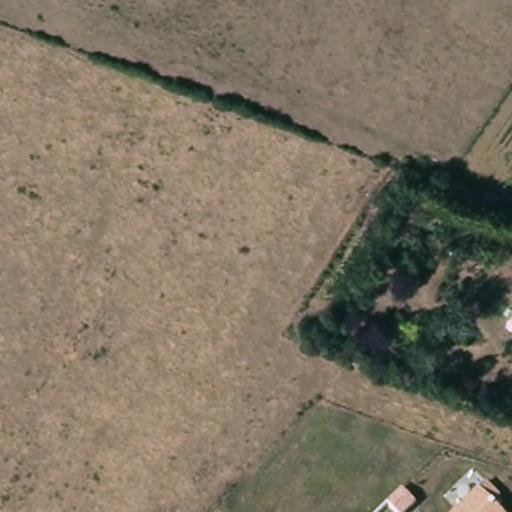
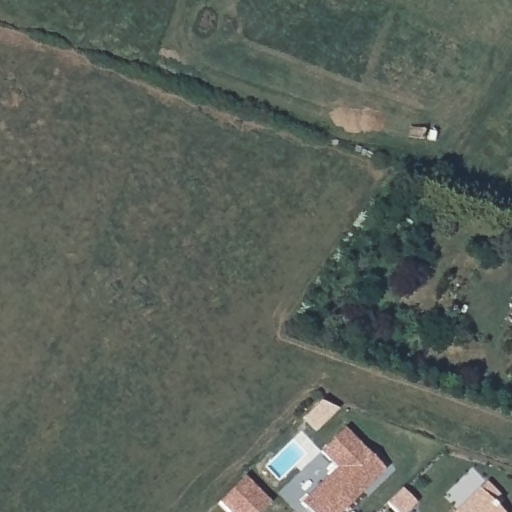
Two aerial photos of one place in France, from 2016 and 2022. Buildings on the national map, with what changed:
new [(335,468),(320,453),(345,427),(385,469),(342,512),(311,512),(301,501),(335,468)]
new [(261,512),(229,512),(220,502),(245,477),(270,502),(261,512)]
unchanged [(479,488),(487,481),(505,499),(497,507),(502,512),(454,512),(479,488)]

